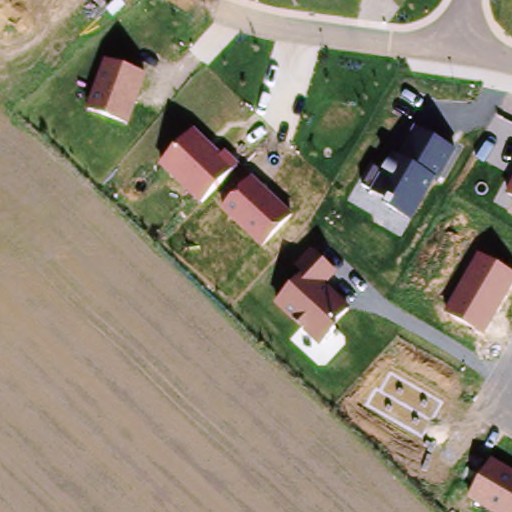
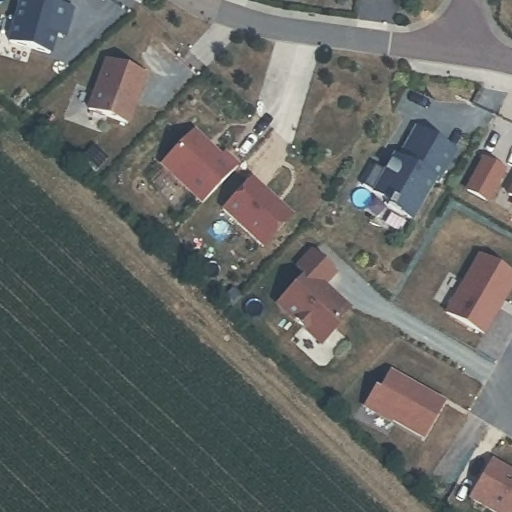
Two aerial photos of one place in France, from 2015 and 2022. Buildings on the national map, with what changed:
new [(54,46),(50,58),(9,45),(21,0),(45,0),(43,4),(74,12),(67,37),(63,48),(54,46)]
unchanged [(105,58),(146,74),(128,123),(88,108),(105,58)]
unchanged [(406,121),(457,151),(414,221),(363,185),(406,121)]
unchanged [(194,130),(221,155),(226,151),(240,164),(199,205),(159,165),(194,130)]
unchanged [(253,179),(293,215),(263,246),(223,209),(253,179)]
unchanged [(512,183),(512,198),(506,195),(512,183)]
unchanged [(319,254),(339,272),(328,284),(353,309),(318,345),(274,304),(319,254)]
unchanged [(512,271),(512,287),(485,336),(447,312),(479,254),(512,271)]
new [(446,401),(426,443),(361,409),(374,386),(380,389),(391,366),(446,401)]
unchanged [(492,457),(512,468),(512,512),(492,512),(468,500),(492,457)]

